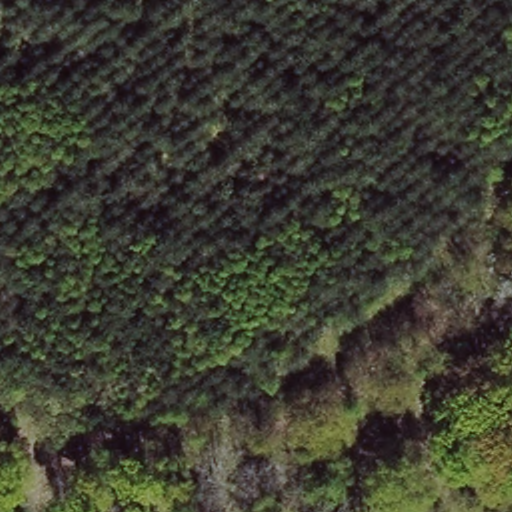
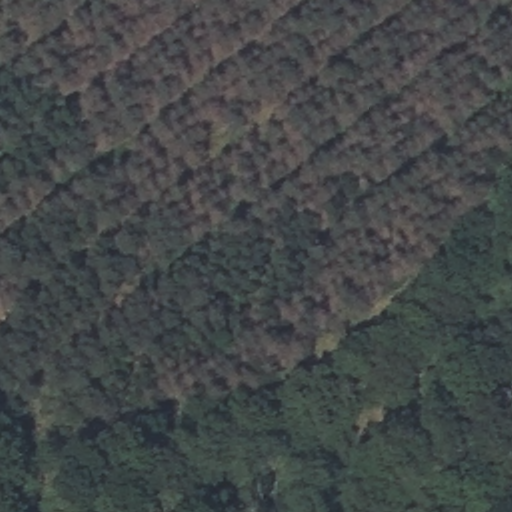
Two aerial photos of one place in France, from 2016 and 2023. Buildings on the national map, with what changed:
[]

